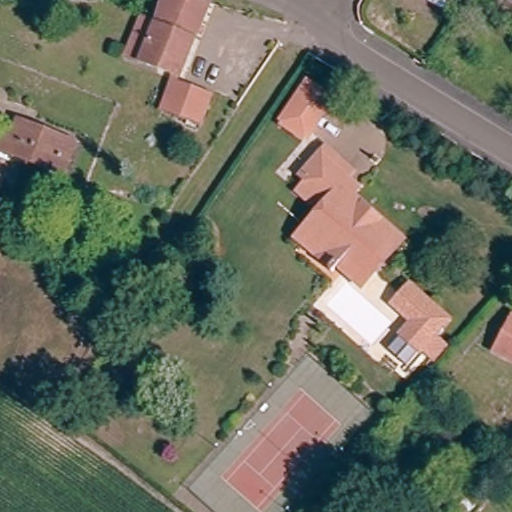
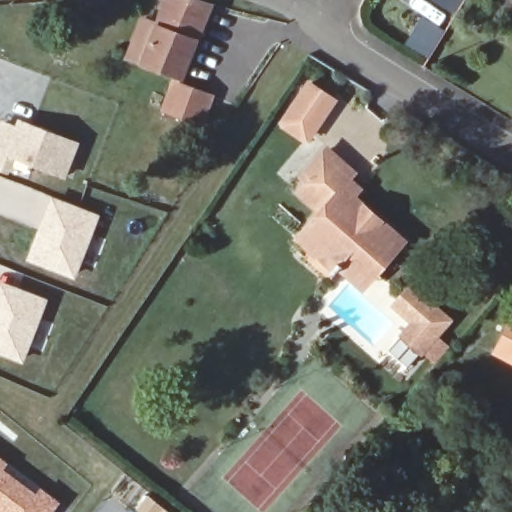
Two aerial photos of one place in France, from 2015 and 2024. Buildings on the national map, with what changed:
unchanged [(139,19),(154,25),(164,0),(185,0),(209,6),(180,78),(139,64),(125,59),(139,19)]
unchanged [(483,0),(494,0),(498,3),(491,13),(479,5),(483,0)]
unchanged [(506,0),(512,0),(512,4),(506,0)]
unchanged [(174,82),(210,97),(199,124),(163,110),(174,82)]
unchanged [(307,83),(332,100),(308,137),(305,135),(303,138),(283,126),(285,122),(283,120),(307,83)]
unchanged [(15,129),(18,123),(75,144),(63,176),(0,153),(0,125),(0,124),(15,129)]
unchanged [(354,176),(364,185),(359,193),(409,240),(365,289),(340,269),(335,275),(292,239),(314,214),(294,193),(303,183),(295,176),(327,142),(361,166),(354,176)]
demolished [(0,189),(0,180),(3,181),(0,189)]
new [(51,195),(100,214),(74,279),(25,260),(51,195)]
new [(22,364),(0,355),(0,280),(48,298),(22,364)]
unchanged [(441,332),(451,346),(436,363),(424,354),(422,357),(397,335),(409,322),(389,305),(411,280),(454,317),(441,332)]
unchanged [(512,320),(512,362),(496,354),(512,320)]
new [(5,468),(35,490),(38,486),(60,502),(53,512),(0,512),(0,457),(9,463),(5,468)]
new [(170,512),(140,512),(135,509),(147,494),(170,512)]

